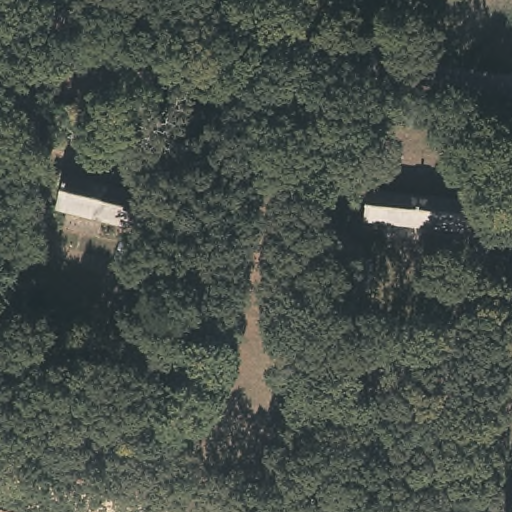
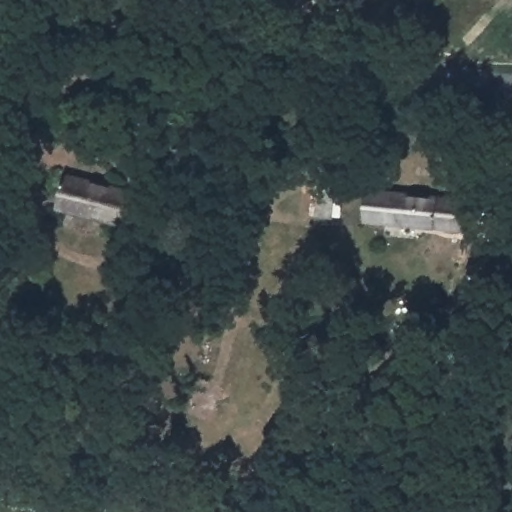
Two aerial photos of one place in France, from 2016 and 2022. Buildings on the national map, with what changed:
unchanged [(149,225),(133,221),(64,202),(72,172),(140,192),(156,197),(149,225)]
unchanged [(474,197),(472,226),(370,216),(374,189),(474,197)]

